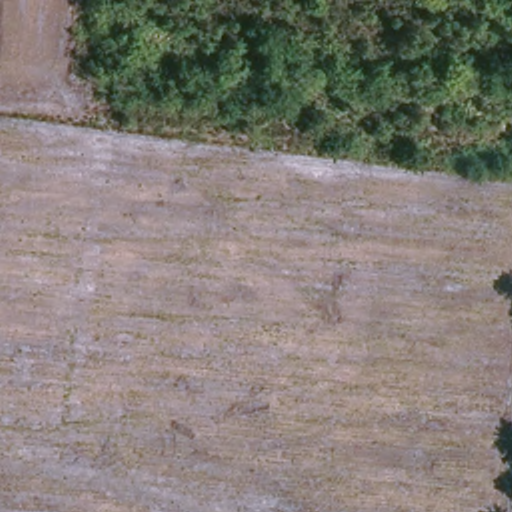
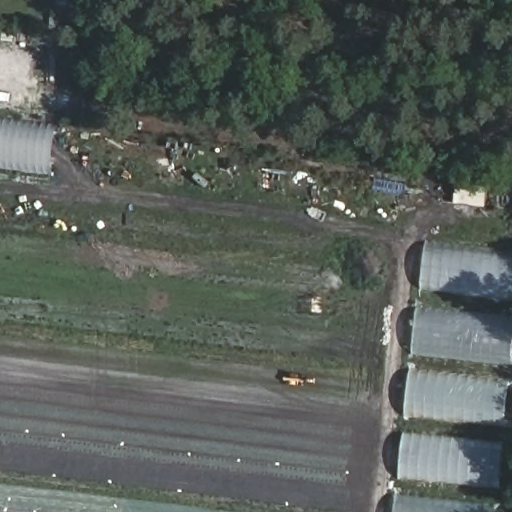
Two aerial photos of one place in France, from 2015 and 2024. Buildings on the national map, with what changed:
new [(0,169),(0,117),(59,125),(54,175),(0,169)]
new [(499,512),(398,512),(428,243),(512,254),(512,392),(499,512)]

